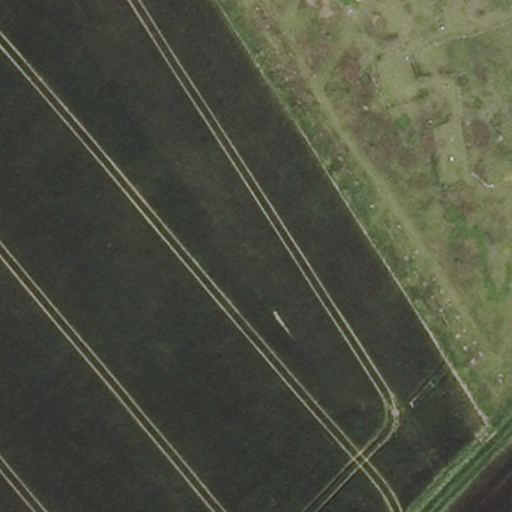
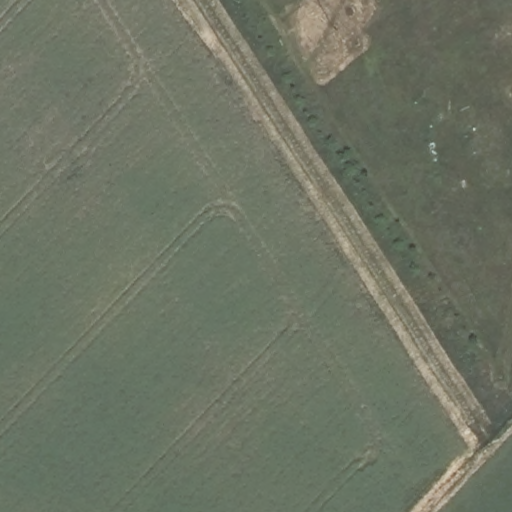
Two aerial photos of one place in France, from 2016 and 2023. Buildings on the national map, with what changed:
[]

